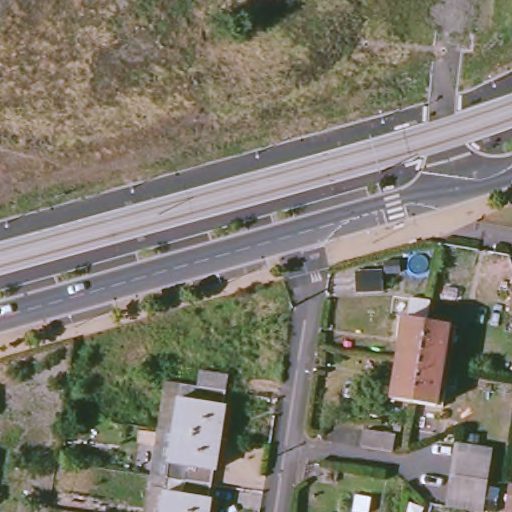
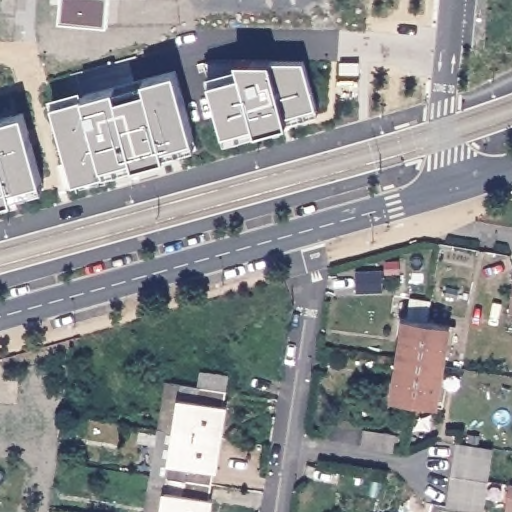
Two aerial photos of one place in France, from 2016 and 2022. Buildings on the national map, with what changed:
new [(105,33),(57,28),(60,0),(106,0),(105,33)]
new [(240,72),(237,59),(272,60),(304,59),(317,104),(320,116),(290,122),(258,131),(229,141),(225,130),(211,82),(240,72)]
new [(194,138),(197,146),(167,156),(135,165),(75,181),(53,105),(84,96),(115,88),(177,70),(194,138)]
new [(42,179),(45,190),(14,198),(0,202),(0,118),(22,112),(42,179)]
unchanged [(386,264),(398,264),(398,276),(386,277),(386,264)]
unchanged [(357,275),(382,274),(383,294),(357,294),(357,275)]
unchanged [(505,306),(510,274),(512,274),(512,307),(505,306)]
unchanged [(390,398),(397,358),(402,317),(404,317),(407,296),(430,300),(428,309),(427,320),(447,324),(442,365),(435,406),(413,402),(390,398)]
unchanged [(222,406),(217,438),(157,428),(167,381),(192,385),(195,370),(227,374),(223,390),(222,391),(220,405),(222,406)]
unchanged [(217,438),(212,470),(209,469),(207,484),(149,475),(157,428),(217,438)]
unchanged [(362,438),(395,444),(392,459),(360,454),(362,438)]
unchanged [(450,488),(452,473),(454,458),(457,442),(495,448),(492,465),(490,479),(487,494),(485,509),(447,503),(450,488)]
unchanged [(205,498),(208,498),(206,512),(142,512),(149,475),(207,484),(205,498)]
unchanged [(507,508),(510,489),(512,489),(512,508),(507,508)]

